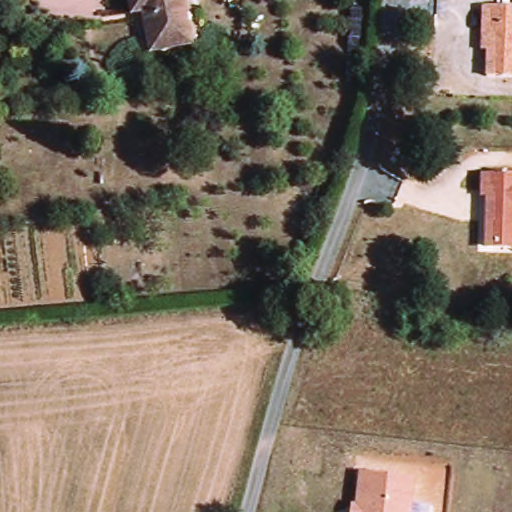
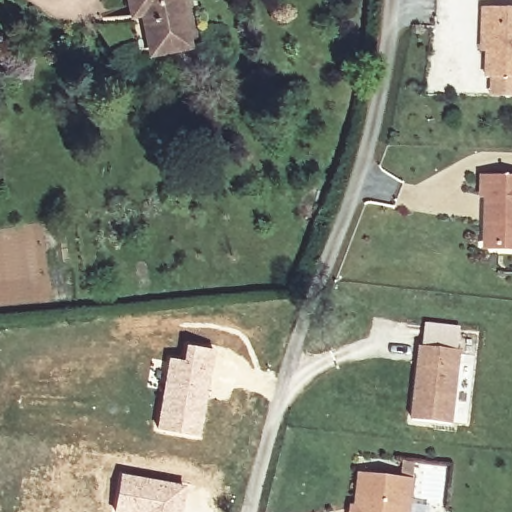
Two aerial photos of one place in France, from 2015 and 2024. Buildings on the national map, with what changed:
unchanged [(150,54),(142,13),(131,15),(129,0),(179,0),(188,46),(150,54)]
unchanged [(488,100),(490,78),(481,78),(482,51),(477,51),(478,25),(479,7),(512,9),(512,99),(488,100)]
unchanged [(480,195),(480,172),(512,173),(512,247),(483,246),(487,196),(480,195)]
new [(167,355),(181,358),(185,342),(215,347),(201,437),(155,428),(167,355)]
new [(419,346),(460,351),(453,423),(410,420),(419,346)]
new [(119,470),(187,484),(182,512),(111,512),(119,470)]
unchanged [(351,504),(358,505),(361,472),(417,478),(414,512),(350,512),(351,504)]

